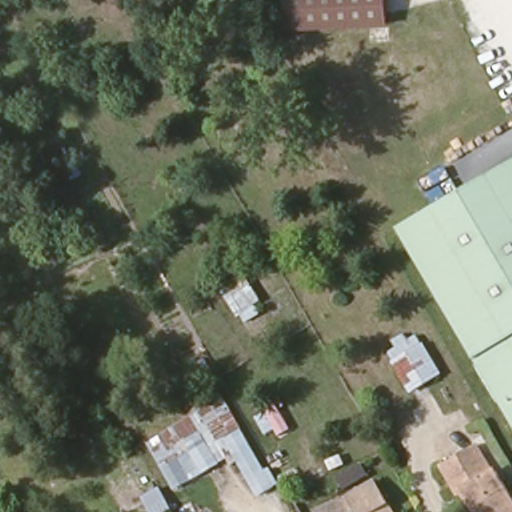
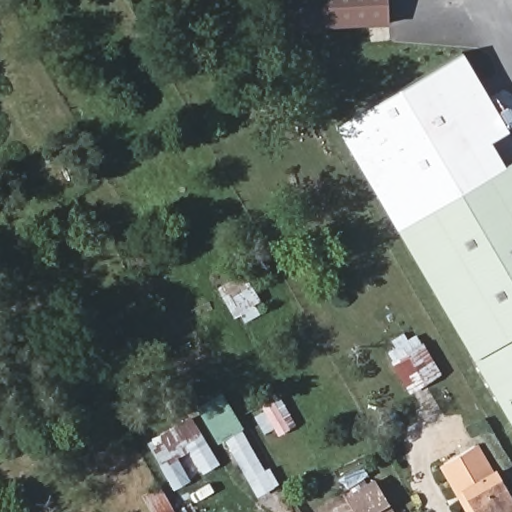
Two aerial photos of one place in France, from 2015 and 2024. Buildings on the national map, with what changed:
new [(287,0),(387,0),(388,24),(289,29),(287,0)]
new [(490,141),(504,166),(397,228),(336,126),(462,52),(509,131),(490,141)]
unchanged [(512,161),(512,424),(397,228),(512,161)]
unchanged [(250,277),(264,300),(255,307),(276,337),(262,344),(226,290),(250,277)]
unchanged [(440,368),(414,385),(397,357),(425,341),(440,368)]
unchanged [(254,497),(229,457),(174,490),(153,457),(232,411),(263,466),(268,463),(278,483),(254,497)]
unchanged [(461,494),(457,497),(439,470),(473,447),(490,475),(495,472),(512,499),(512,512),(473,512),(461,494)]
unchanged [(346,496),(375,479),(395,512),(354,512),(346,496)]
unchanged [(159,485),(173,512),(150,512),(141,495),(159,485)]

